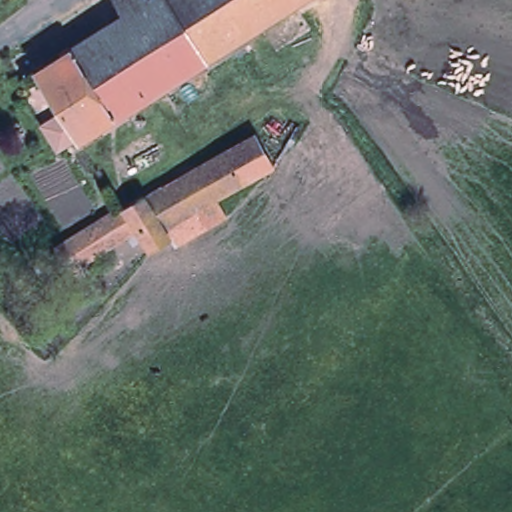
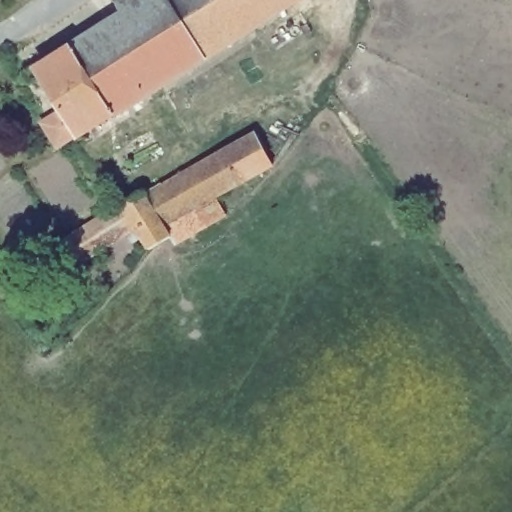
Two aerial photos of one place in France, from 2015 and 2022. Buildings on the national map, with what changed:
unchanged [(303,0),(117,117),(77,49),(125,17),(152,0),(303,0)]
unchanged [(116,0),(152,0),(125,17),(116,0)]
unchanged [(77,49),(117,117),(82,139),(40,71),(77,49)]
unchanged [(145,189),(147,191),(257,132),(274,161),(217,191),(228,210),(175,239),(170,233),(147,242),(141,232),(135,221),(120,227),(109,209),(145,189)]
unchanged [(109,209),(120,227),(135,221),(141,232),(68,272),(54,241),(109,209)]

